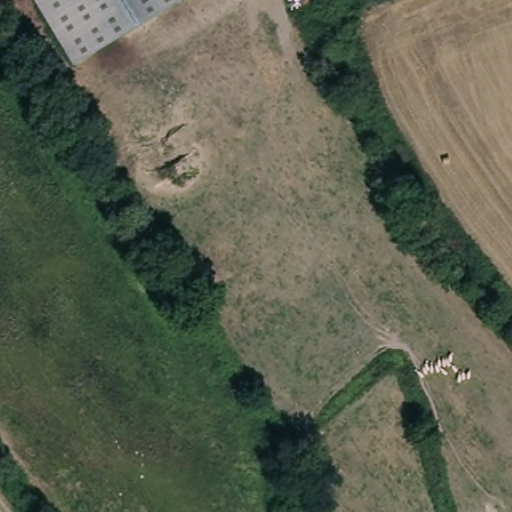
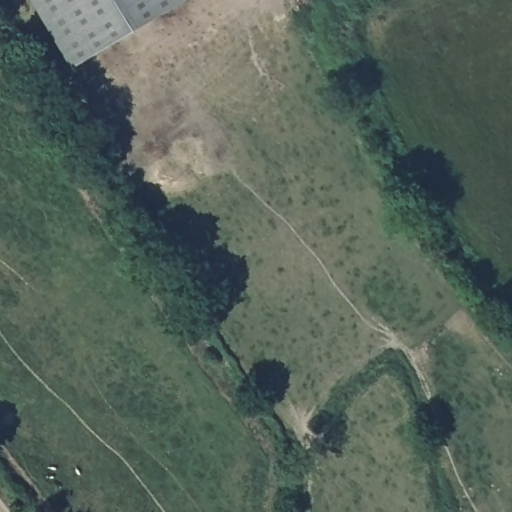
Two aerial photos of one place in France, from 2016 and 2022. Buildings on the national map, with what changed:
unchanged [(31,0),(141,0),(55,47),(31,0)]

